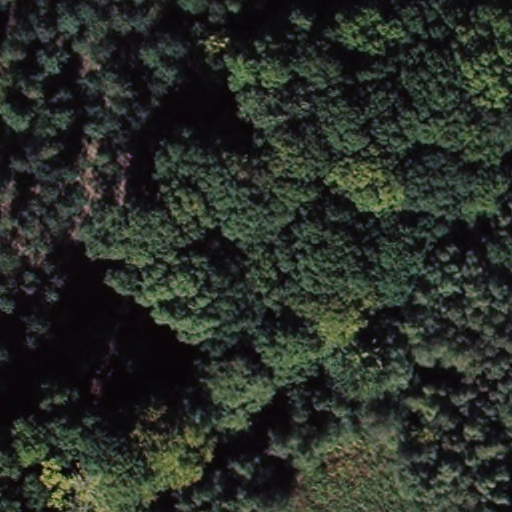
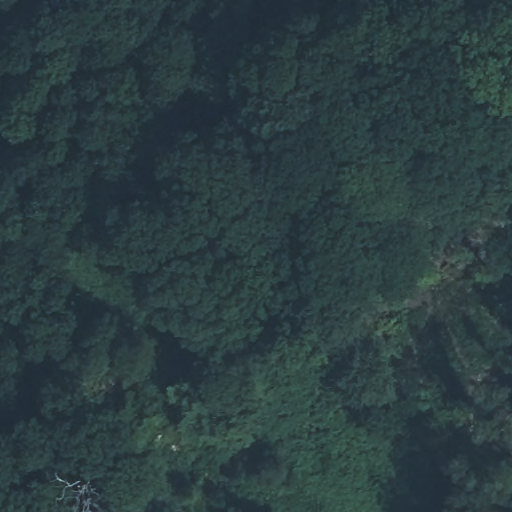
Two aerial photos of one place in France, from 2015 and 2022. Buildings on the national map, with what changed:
[]

